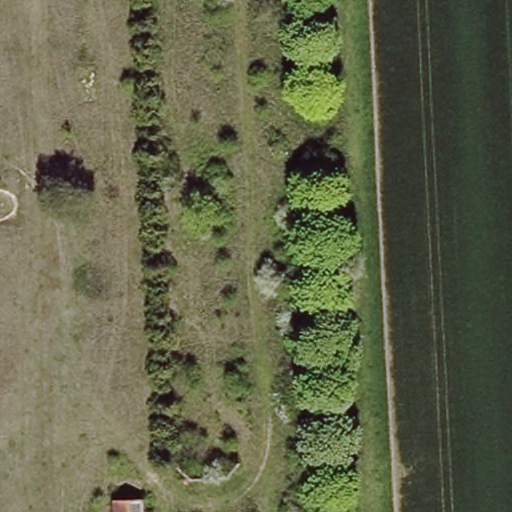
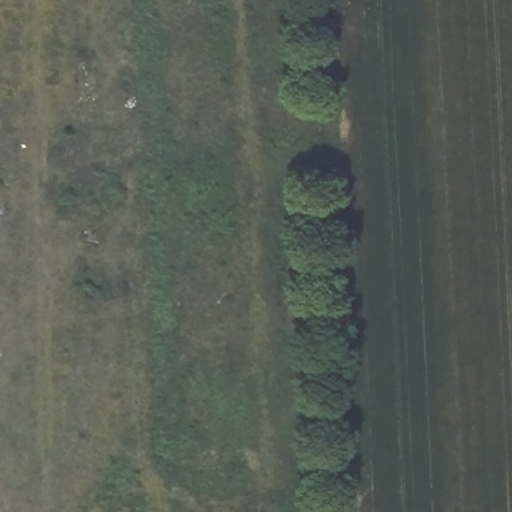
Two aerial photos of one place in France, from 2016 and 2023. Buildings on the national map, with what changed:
demolished [(146,512),(113,512),(112,499),(145,497),(146,512)]

